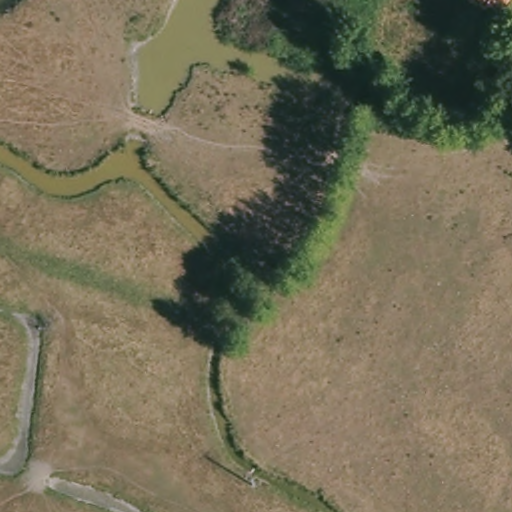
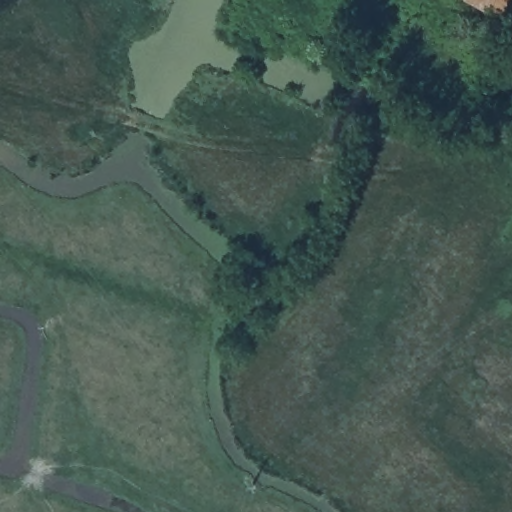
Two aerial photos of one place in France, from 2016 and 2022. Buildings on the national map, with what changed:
unchanged [(500,13),(486,7),(482,16),(468,7),(470,0),(505,0),(500,13)]

